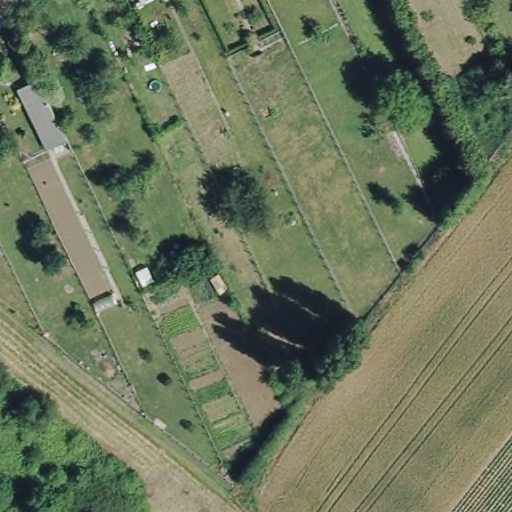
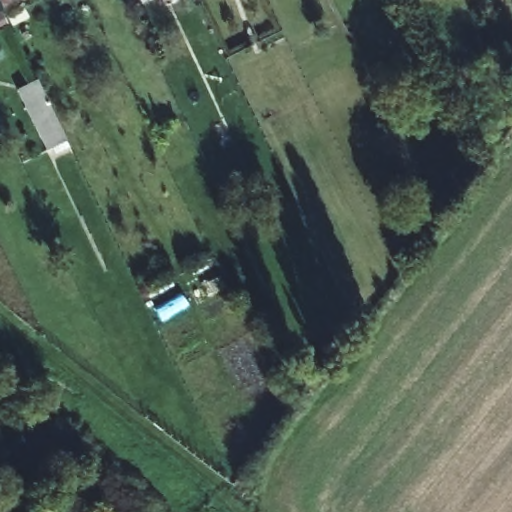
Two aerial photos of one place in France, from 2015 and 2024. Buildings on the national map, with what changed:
unchanged [(40,81),(65,141),(48,148),(17,90),(40,81)]

